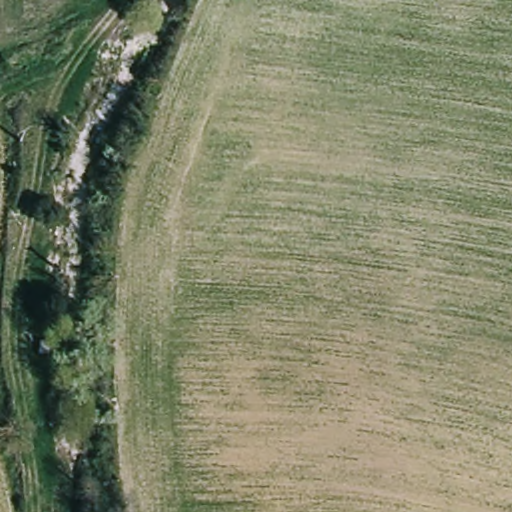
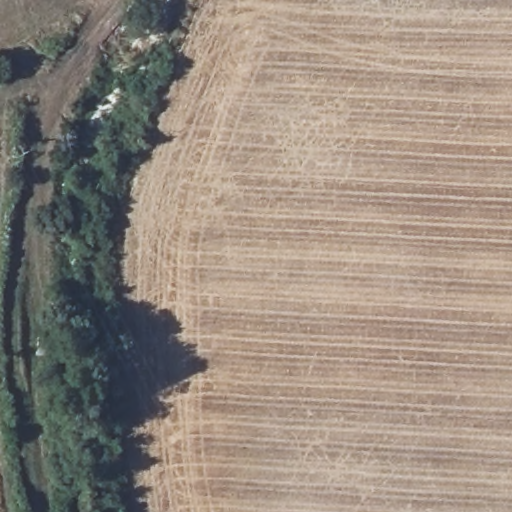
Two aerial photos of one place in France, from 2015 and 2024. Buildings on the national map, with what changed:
unchanged [(34,351),(47,352),(46,365),(33,364),(34,351)]

